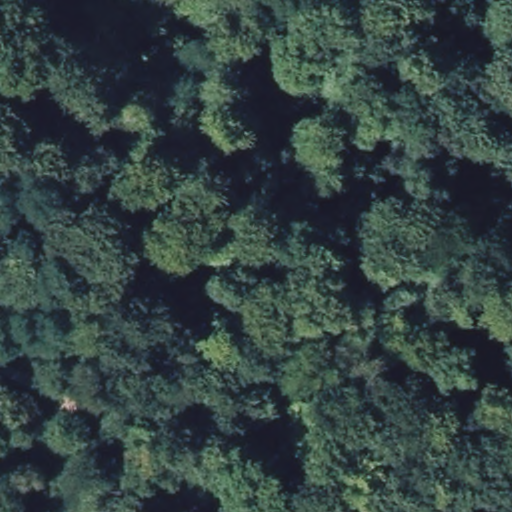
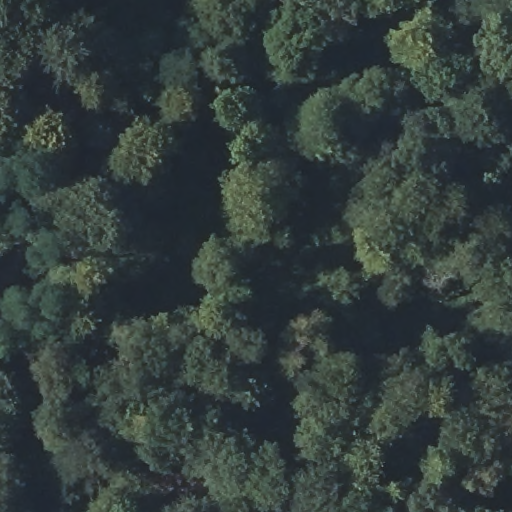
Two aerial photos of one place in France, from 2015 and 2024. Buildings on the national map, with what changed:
unchanged [(193,421),(233,452),(208,477),(168,446),(193,421)]

